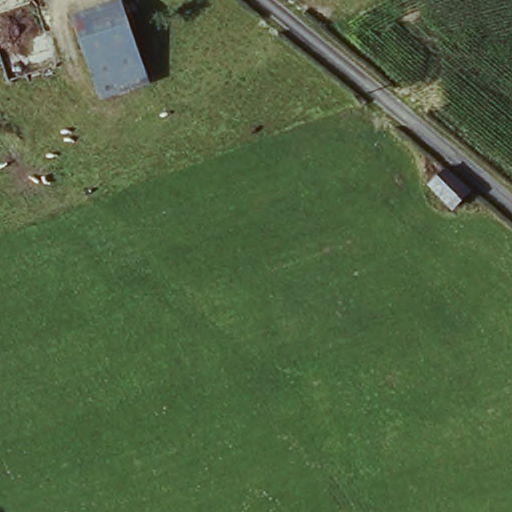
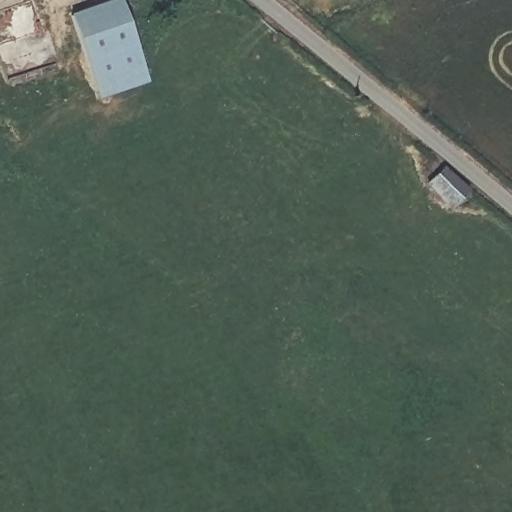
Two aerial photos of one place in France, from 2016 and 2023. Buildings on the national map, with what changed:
unchanged [(121,7),(146,84),(100,96),(76,22),(121,7)]
unchanged [(430,197),(448,175),(472,195),(454,216),(430,197)]

